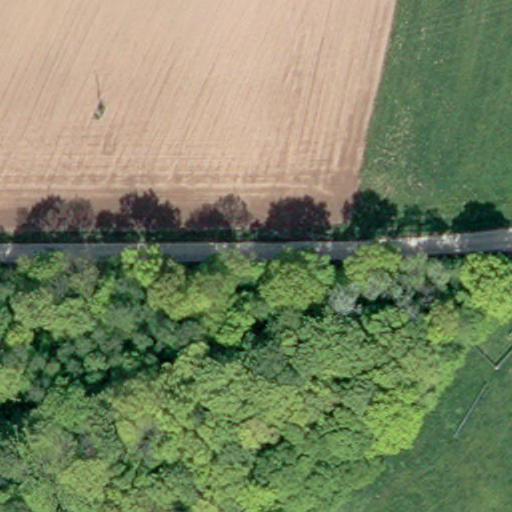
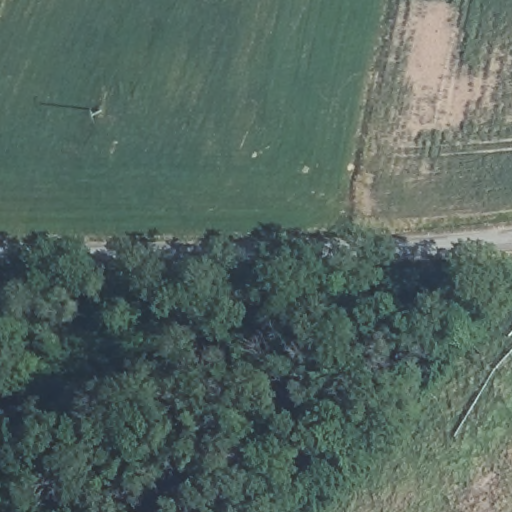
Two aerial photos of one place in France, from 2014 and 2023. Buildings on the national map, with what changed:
[]

